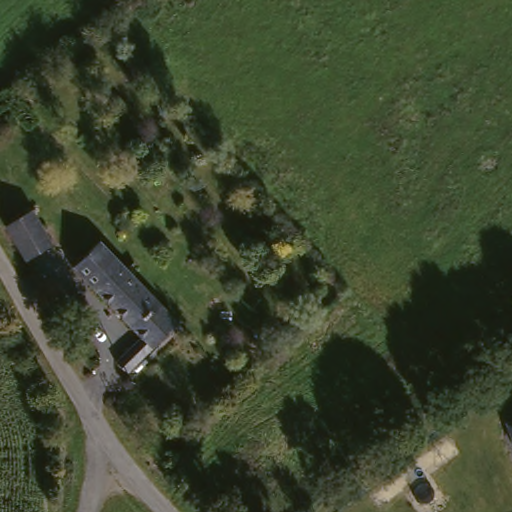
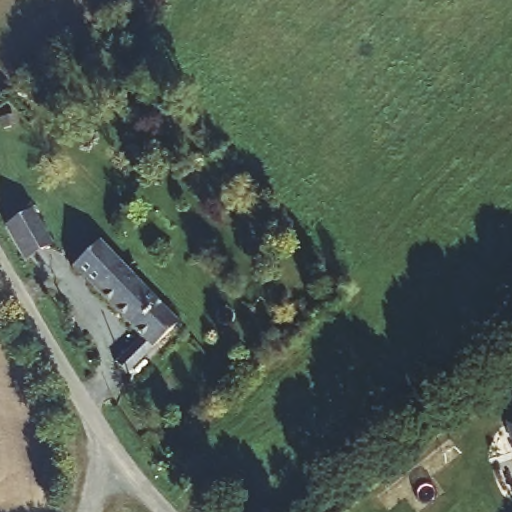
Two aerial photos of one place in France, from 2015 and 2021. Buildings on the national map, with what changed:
unchanged [(12,228),(15,225),(8,213),(25,203),(32,214),(34,213),(54,248),(30,263),(12,228)]
unchanged [(106,239),(180,320),(131,369),(120,356),(142,334),(78,265),(106,239)]
unchanged [(512,422),(512,447),(505,424),(512,422)]

